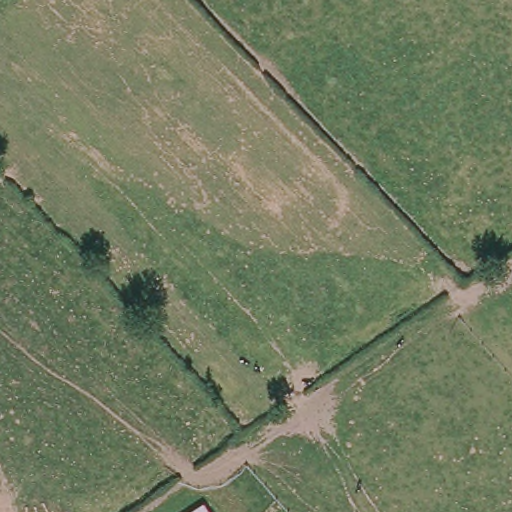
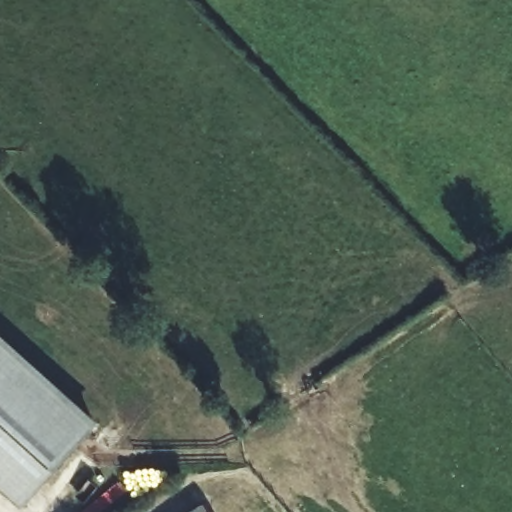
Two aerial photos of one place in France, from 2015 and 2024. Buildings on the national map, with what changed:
new [(0,487),(0,332),(100,423),(23,508),(0,487)]
unchanged [(205,512),(195,512),(202,508),(205,512)]

